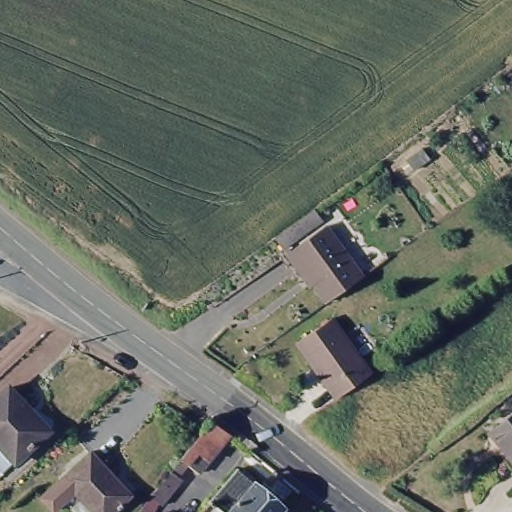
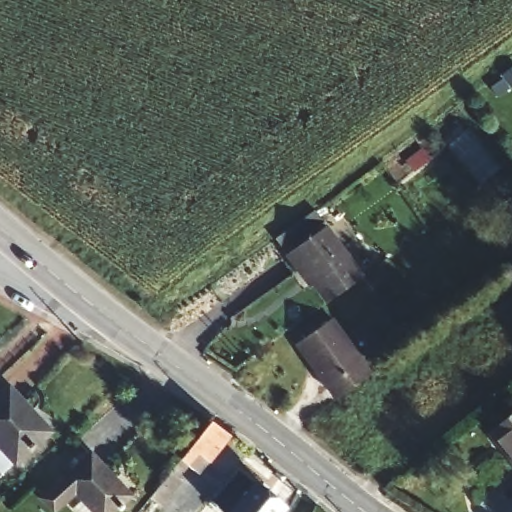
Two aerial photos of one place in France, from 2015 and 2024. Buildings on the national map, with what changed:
unchanged [(314,206),(322,217),(284,244),(276,234),(314,206)]
unchanged [(326,223),(363,274),(342,289),(327,300),(307,270),(303,271),(287,251),(326,223)]
unchanged [(332,321),(372,376),(337,401),(297,346),(332,321)]
unchanged [(0,469),(0,397),(13,385),(36,408),(35,410),(53,430),(20,459),(3,473),(0,469)]
unchanged [(512,456),(491,431),(512,414),(512,456)]
unchanged [(210,425),(211,423),(231,436),(200,476),(188,468),(179,479),(183,482),(162,508),(150,498),(210,425)]
unchanged [(135,492),(112,512),(84,512),(76,504),(85,496),(67,475),(96,450),(135,492)]
unchanged [(295,511),(294,512),(229,512),(220,505),(249,472),(295,511)]

